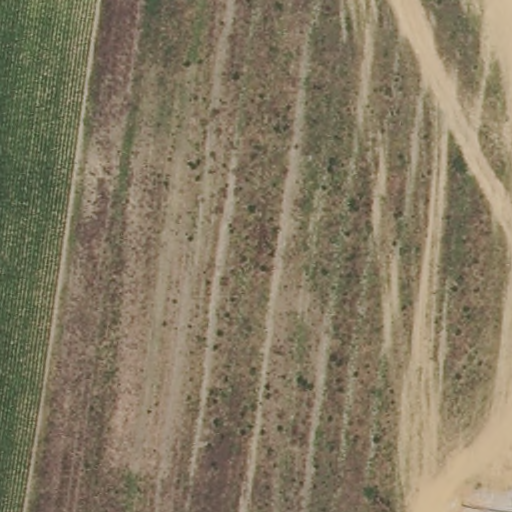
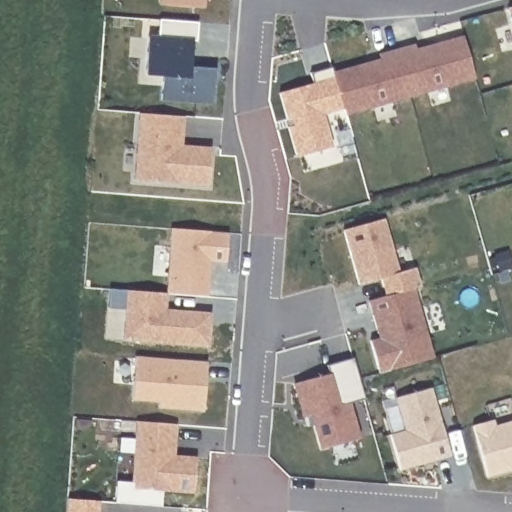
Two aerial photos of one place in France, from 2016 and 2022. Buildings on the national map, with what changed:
new [(161,4),(161,0),(206,0),(206,8),(161,4)]
new [(512,7),(512,19),(509,8),(512,7)]
new [(150,36),(159,37),(161,19),(199,23),(197,41),(190,40),(189,58),(192,58),(192,66),(217,69),(215,104),(162,99),(164,75),(147,74),(150,36)]
new [(416,44),(417,49),(464,35),(476,79),(411,96),(398,49),(416,44)]
new [(381,59),(380,54),(398,49),(411,96),(346,114),(345,109),(334,71),(381,59)]
new [(314,83),(311,73),(333,66),(334,71),(345,109),(324,114),(333,146),(299,156),(291,126),(296,125),(293,118),(288,119),(281,93),(314,83)]
new [(186,116),(184,138),(183,145),(212,148),(210,186),(136,180),(141,113),(186,116)]
new [(385,219),(400,272),(416,268),(421,286),(415,288),(387,295),(382,278),(360,284),(344,229),(385,219)]
new [(172,228),(230,233),(227,263),(211,262),(209,296),(168,293),(172,228)]
new [(387,295),(415,288),(435,357),(380,373),(371,340),(380,338),(370,300),(387,295)]
new [(110,308),(111,289),(129,290),(168,293),(167,309),(173,310),(212,313),(210,347),(125,340),(127,309),(110,308)]
new [(137,356),(208,361),(204,411),(160,408),(160,402),(133,399),(137,356)]
new [(330,374),(327,364),(354,358),(366,398),(351,402),(361,438),(322,448),(313,415),(305,417),(296,383),(330,374)]
new [(401,469),(391,434),(406,431),(397,398),(432,388),(451,456),(433,461),(423,463),(401,469)]
new [(473,424),(494,419),(496,425),(512,420),(512,469),(487,476),(473,424)]
new [(178,424),(177,447),(176,455),(198,457),(196,493),(133,488),(138,421),(178,424)]
new [(69,498),(100,501),(99,512),(67,512),(69,498)]

